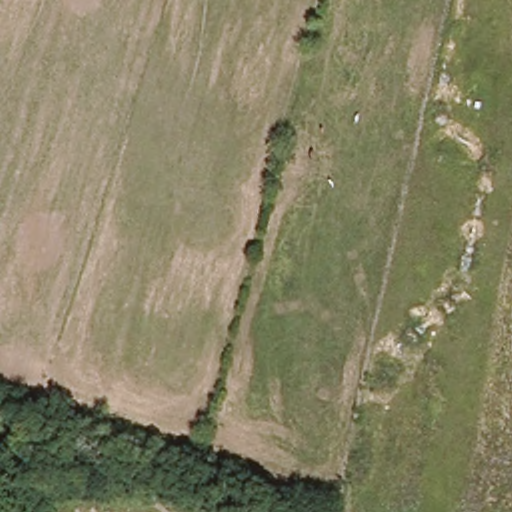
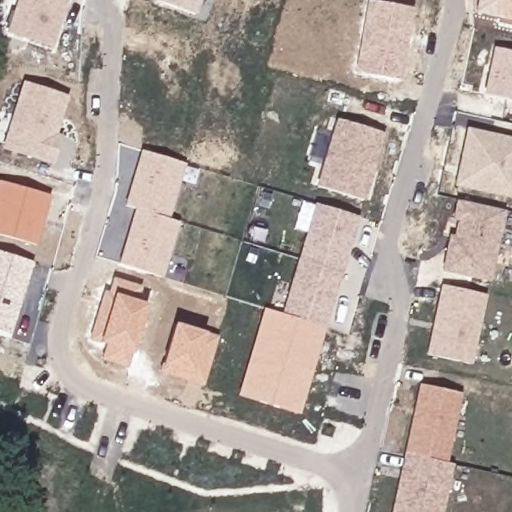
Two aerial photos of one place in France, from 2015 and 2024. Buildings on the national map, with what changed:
new [(5,33),(14,0),(67,0),(52,47),(5,33)]
new [(155,1),(155,0),(201,0),(196,14),(155,1)]
new [(398,80),(352,72),(366,0),(369,0),(412,7),(398,80)]
new [(512,0),(512,21),(473,12),(475,0),(512,0)]
new [(512,100),(482,94),(492,47),(512,50),(512,100)]
new [(22,81),(68,97),(56,134),(61,136),(52,166),(0,148),(22,81)]
new [(383,132),(363,201),(315,185),(335,119),(383,132)]
new [(512,199),(452,186),(466,126),(512,137),(512,199)]
new [(161,277),(116,263),(134,208),(123,205),(141,150),(185,164),(167,219),(179,222),(161,277)]
new [(49,195),(36,245),(0,235),(0,181),(49,195)]
new [(452,237),(455,221),(449,220),(454,199),(504,211),(488,283),(438,272),(447,235),(452,237)]
new [(281,313),(314,203),(359,217),(297,413),(235,396),(262,307),(281,313)]
new [(0,332),(0,252),(32,262),(9,335),(0,332)]
new [(102,345),(97,342),(87,339),(102,291),(107,292),(112,277),(141,287),(135,301),(145,304),(131,353),(127,352),(125,367),(101,358),(102,345)]
new [(485,295),(470,364),(424,353),(440,285),(485,295)]
new [(161,364),(172,322),(205,332),(217,337),(201,387),(157,372),(161,363),(161,364)]
new [(462,393),(445,462),(452,464),(441,512),(389,512),(418,382),(462,393)]

